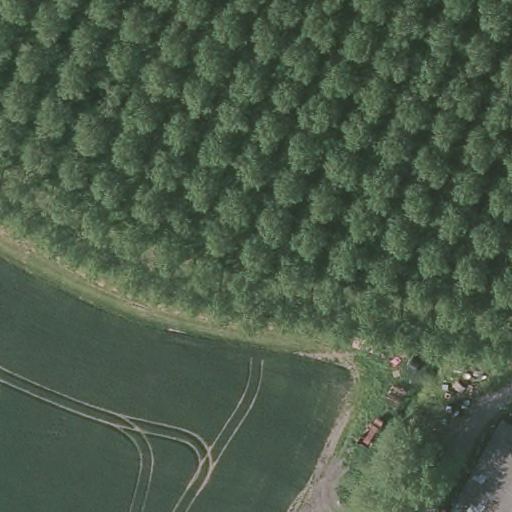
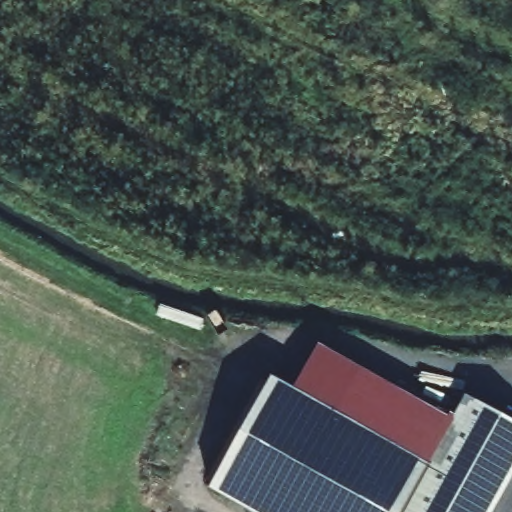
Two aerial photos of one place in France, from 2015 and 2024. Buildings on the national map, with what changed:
new [(468,389),(507,410),(441,512),(249,512),(210,490),(271,379),(292,390),(319,345),(452,420),(468,389)]
unchanged [(512,413),(512,512),(441,512),(507,410),(512,413)]

